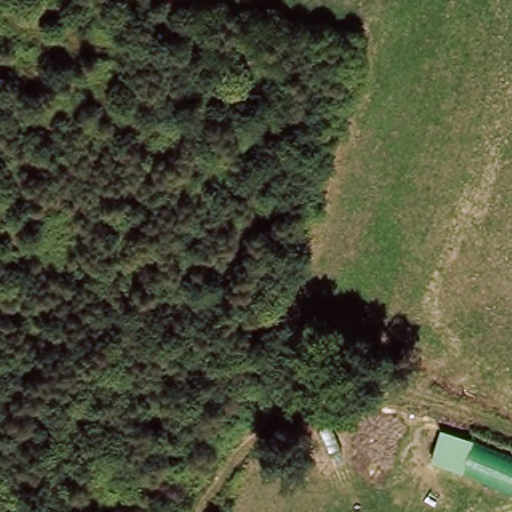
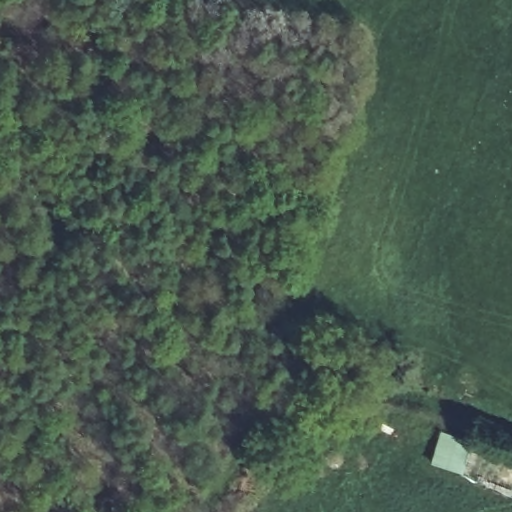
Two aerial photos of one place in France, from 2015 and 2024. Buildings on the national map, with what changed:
unchanged [(441,434),(472,442),(512,456),(512,496),(430,464),(441,434)]

